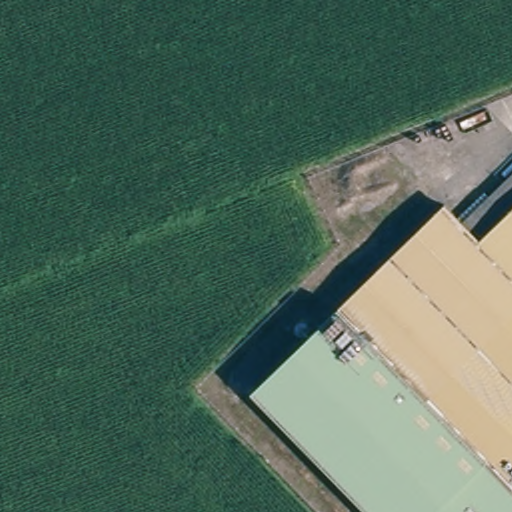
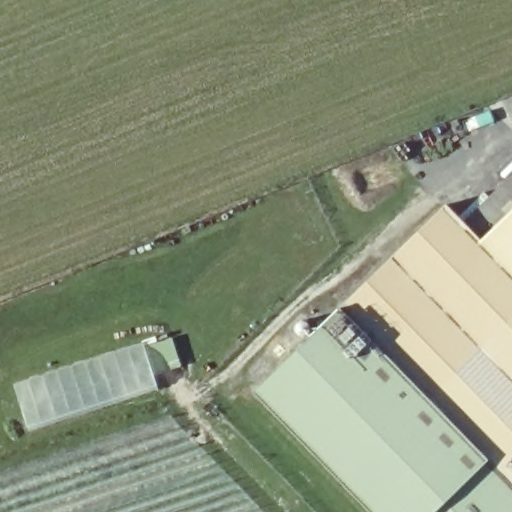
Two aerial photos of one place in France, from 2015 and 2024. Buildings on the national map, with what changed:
unchanged [(512,168),(512,512),(379,512),(250,375),(317,312),(437,197),(458,218),(512,168)]
new [(171,336),(181,365),(168,369),(164,361),(148,366),(142,346),(171,336)]
new [(143,340),(144,345),(142,346),(148,366),(151,365),(157,385),(27,428),(13,384),(143,340)]

